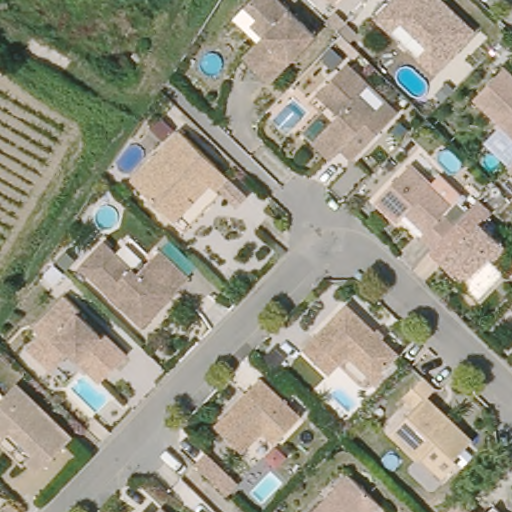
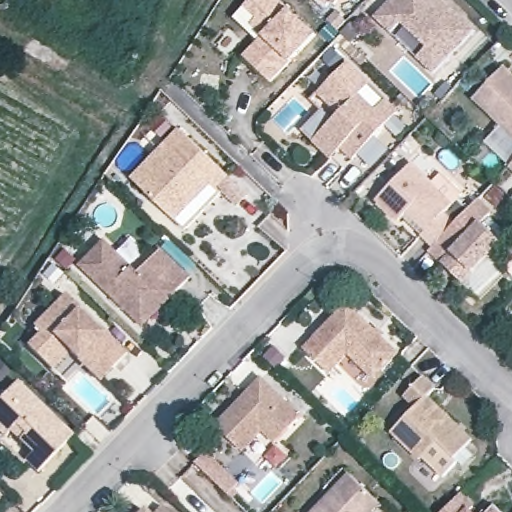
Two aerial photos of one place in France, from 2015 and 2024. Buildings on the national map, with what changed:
unchanged [(265,32),(253,21),(259,14),(247,2),(249,0),(286,0),(318,31),(272,78),(251,58),(245,52),(265,32)]
unchanged [(481,29),(440,72),(423,56),(433,46),(407,21),(397,31),(381,15),(395,0),(451,0),(481,29)]
unchanged [(319,136),(325,130),(346,109),(324,88),(353,58),(376,79),(365,90),(382,106),(392,95),(404,107),(358,154),(347,143),(342,148),(337,154),(319,136)]
unchanged [(512,68),(512,126),(483,97),(512,68)]
unchanged [(183,217),(140,175),(186,128),(235,175),(223,186),(218,181),(202,198),(183,217)]
unchanged [(453,221),(446,228),(432,243),(420,232),(425,228),(406,210),(398,218),(375,197),(410,162),(451,202),(457,196),(467,207),(453,221)]
unchanged [(432,243),(446,228),(459,240),(479,219),(506,245),(476,275),(471,270),(461,280),(428,248),(432,243)]
unchanged [(148,322),(87,261),(110,236),(143,268),(167,245),(195,274),(181,288),(162,308),(148,322)]
unchanged [(89,363),(73,348),(55,366),(32,343),(45,330),(38,323),(70,291),(85,306),(82,309),(104,331),(107,328),(130,351),(117,365),(104,378),(89,363)]
unchanged [(353,346),(334,366),(309,342),(352,297),(403,346),(383,367),(379,371),(353,346)]
unchanged [(308,413),(282,439),(269,427),(249,448),(222,422),(268,374),(308,413)]
unchanged [(443,479),(422,456),(395,429),(419,404),(408,394),(427,375),(438,386),(430,394),(475,438),(457,456),(461,461),(443,479)]
unchanged [(7,437),(12,431),(0,420),(0,401),(23,378),(78,432),(43,468),(32,456),(28,459),(7,437)]
unchanged [(386,500),(375,512),(315,512),(355,470),(386,500)]
unchanged [(471,509),(474,512),(444,512),(460,498),(471,509)]
unchanged [(172,512),(155,512),(163,503),(172,512)]
unchanged [(151,512),(140,512),(145,506),(151,512)]
unchanged [(501,512),(489,512),(495,506),(501,512)]

